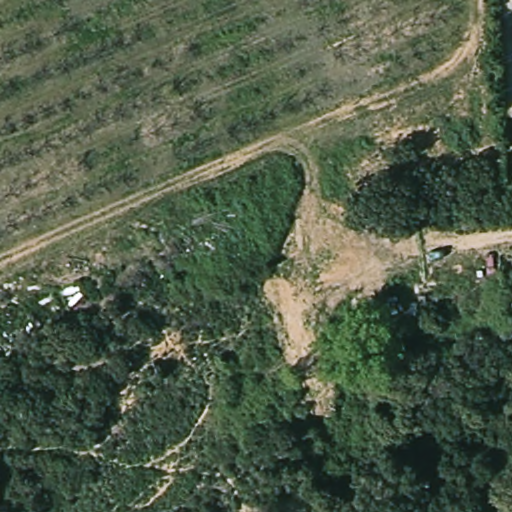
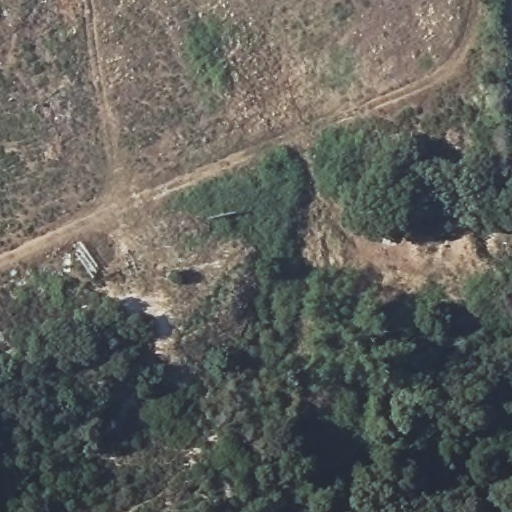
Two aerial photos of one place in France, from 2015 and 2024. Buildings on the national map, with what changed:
[]

